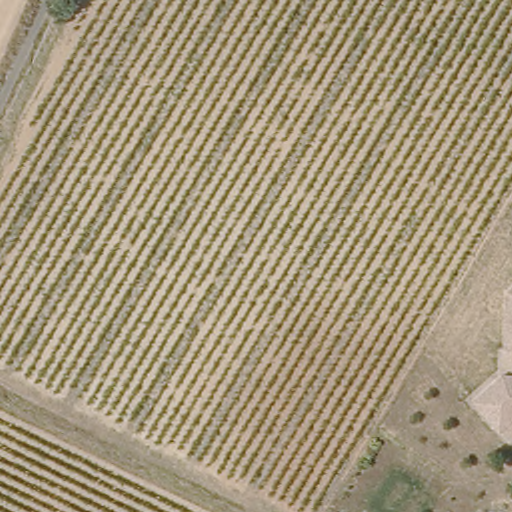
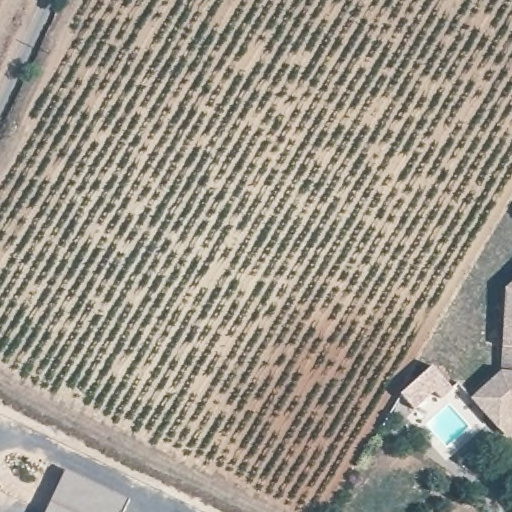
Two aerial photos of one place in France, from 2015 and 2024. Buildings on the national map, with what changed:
unchanged [(503,371),(507,287),(512,284),(512,438),(475,397),(503,371)]
new [(431,368),(452,391),(440,401),(434,393),(414,412),(400,398),(431,368)]
new [(67,472),(128,501),(123,512),(48,512),(67,472)]

